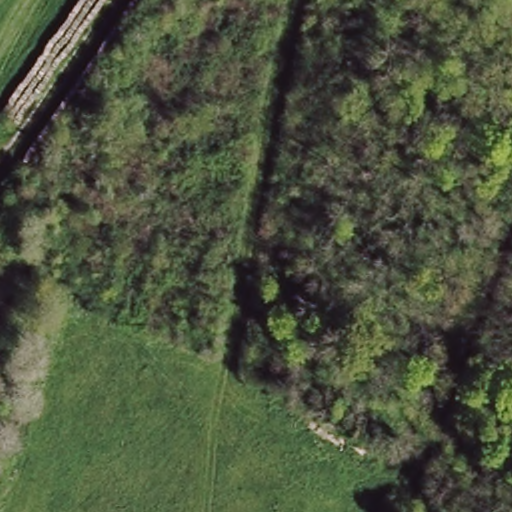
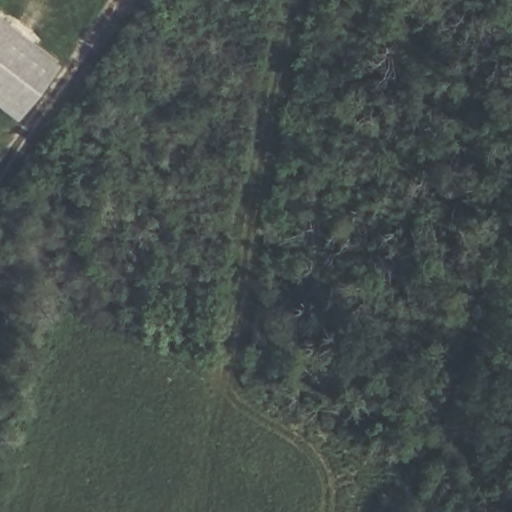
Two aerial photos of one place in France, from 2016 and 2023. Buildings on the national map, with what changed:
new [(0,105),(0,16),(61,61),(17,118),(0,105)]

